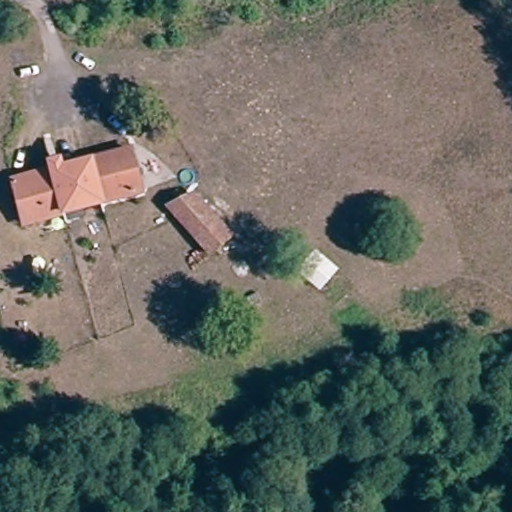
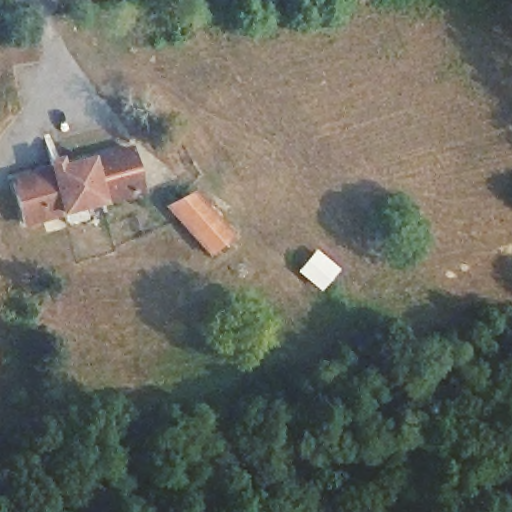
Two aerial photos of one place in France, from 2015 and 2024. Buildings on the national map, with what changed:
unchanged [(128,141),(140,186),(91,201),(65,209),(25,221),(12,173),(128,141)]
unchanged [(191,196),(226,235),(209,249),(171,207),(191,196)]
unchanged [(307,260),(316,250),(338,269),(331,279),(320,292),(297,273),(307,260)]

